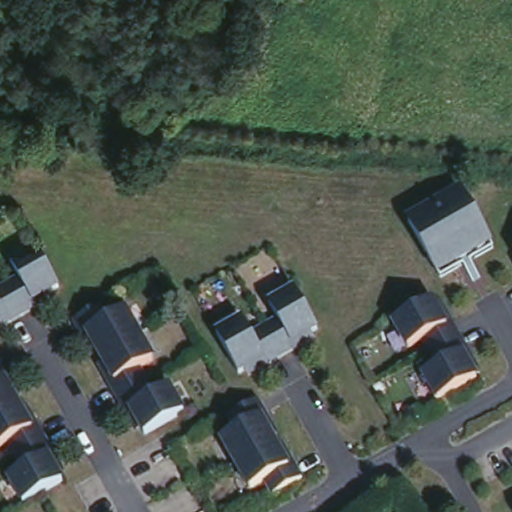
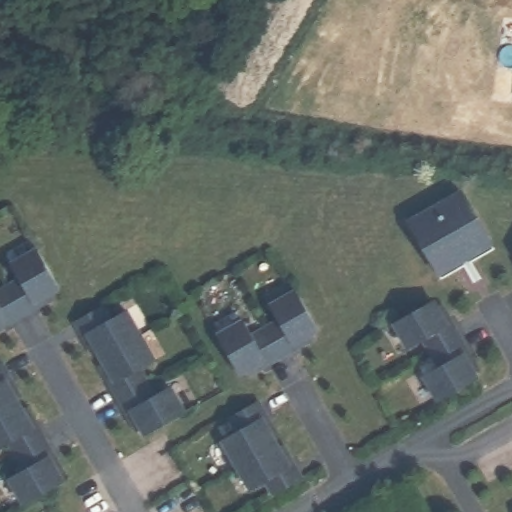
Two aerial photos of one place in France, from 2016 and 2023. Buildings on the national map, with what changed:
unchanged [(410,214),(464,183),(494,242),(441,271),(410,214)]
unchanged [(16,274),(10,261),(37,242),(59,291),(0,323),(0,286),(16,274)]
unchanged [(218,330),(247,314),(252,324),(274,312),(269,302),(299,286),(321,331),(241,370),(218,330)]
unchanged [(424,371),(441,361),(426,335),(411,343),(396,319),(441,294),(483,372),(438,397),(424,371)]
unchanged [(84,311),(111,297),(119,308),(131,302),(157,355),(149,361),(162,386),(174,379),(188,408),(147,428),(84,311)]
unchanged [(10,474),(27,462),(12,437),(0,443),(0,363),(7,359),(72,471),(25,499),(10,474)]
unchanged [(268,474),(249,485),(222,434),(244,423),(237,413),(265,395),(307,472),(275,488),(268,474)]

